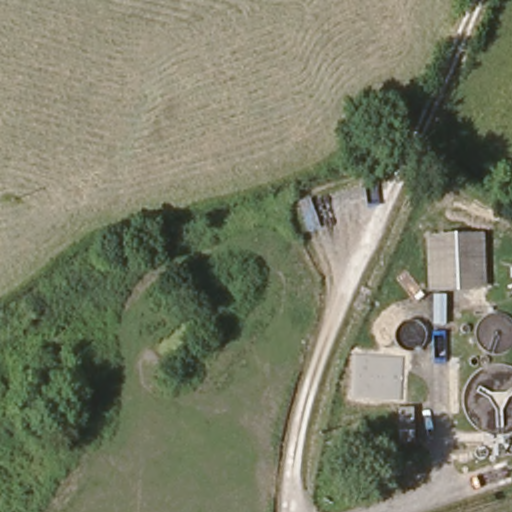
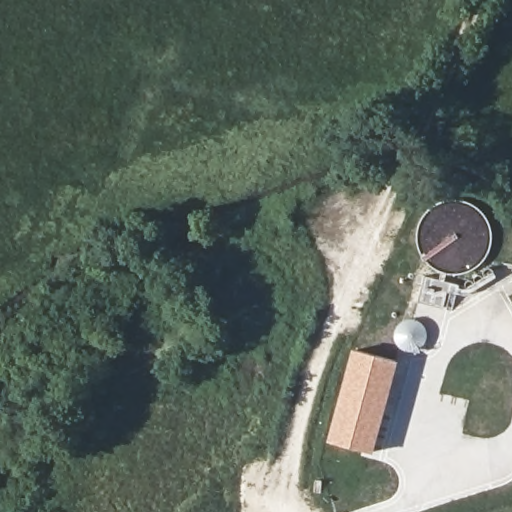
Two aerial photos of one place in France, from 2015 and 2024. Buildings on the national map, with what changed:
new [(398,361),(373,453),(327,440),(352,349),(398,361)]
unchanged [(413,406),(415,439),(400,440),(400,406),(413,406)]

